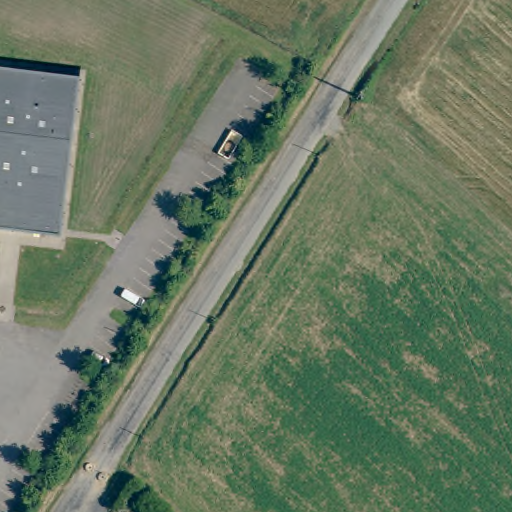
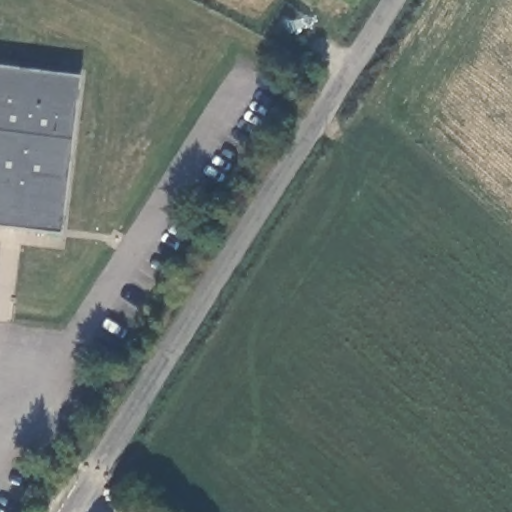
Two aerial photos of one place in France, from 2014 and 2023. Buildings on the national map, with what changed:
unchanged [(65,236),(0,228),(0,66),(84,76),(65,236)]

